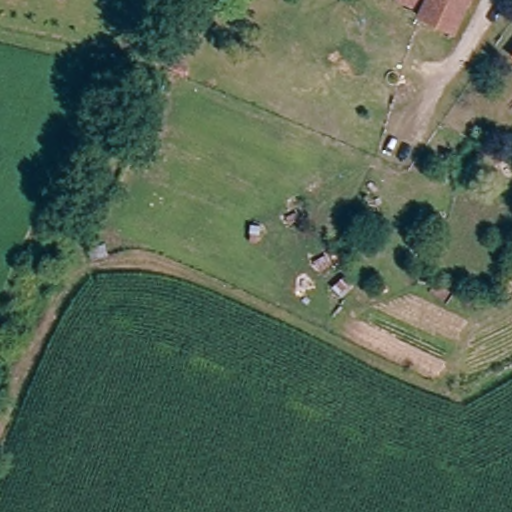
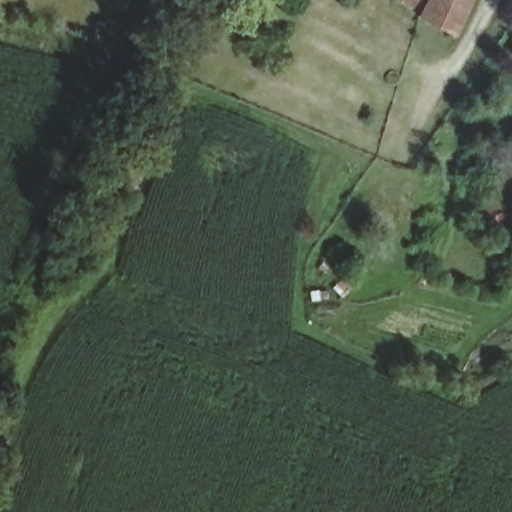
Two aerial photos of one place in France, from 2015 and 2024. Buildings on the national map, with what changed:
unchanged [(413,0),(472,0),(464,19),(457,16),(449,33),(417,19),(407,14),(413,0)]

